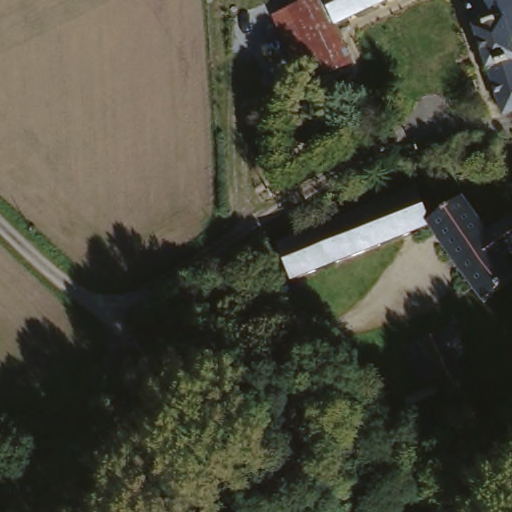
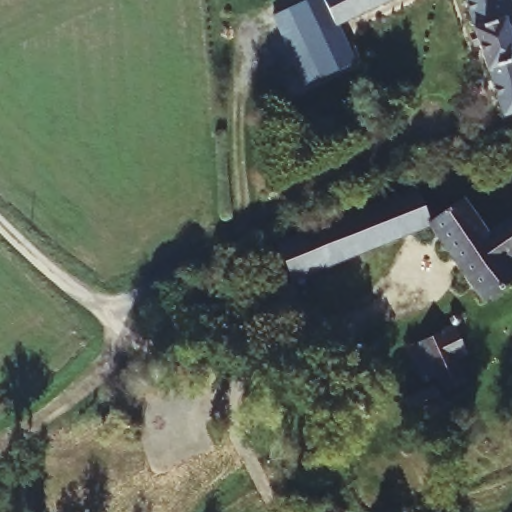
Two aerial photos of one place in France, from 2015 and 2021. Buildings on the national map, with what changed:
unchanged [(294,0),(327,0),(338,25),(351,54),(304,75),(273,9),(294,0)]
unchanged [(327,0),(395,0),(338,25),(327,0)]
unchanged [(512,41),(510,41),(512,47),(512,114),(504,116),(460,0),(512,0),(512,41)]
unchanged [(443,205),(464,190),(480,212),(496,200),(506,214),(512,209),(512,253),(507,256),(512,264),(512,304),(492,317),(424,219),(266,292),(248,255),(421,176),(443,205)]
unchanged [(459,319),(472,347),(458,353),(472,381),(451,391),(441,371),(429,376),(412,340),(459,319)]
unchanged [(432,380),(440,398),(417,409),(410,391),(432,380)]

